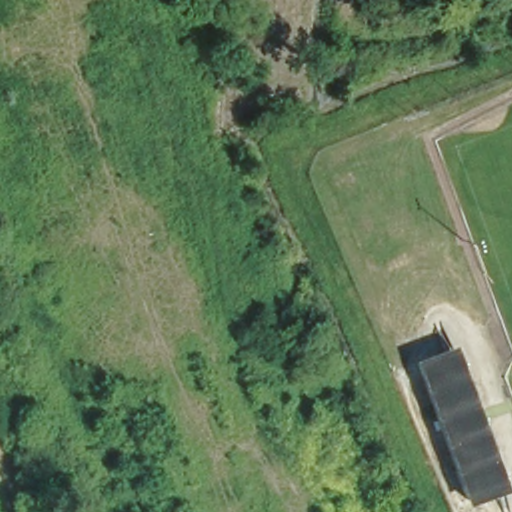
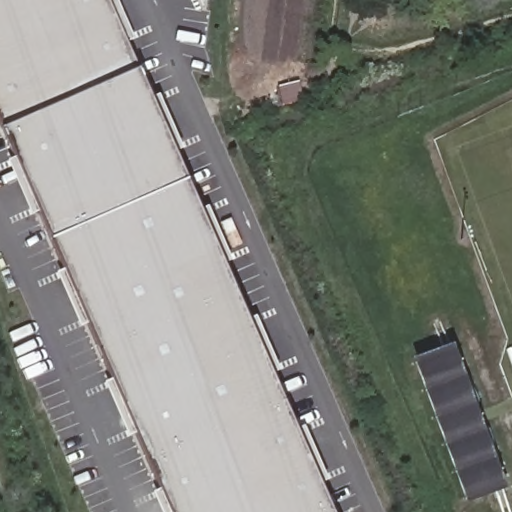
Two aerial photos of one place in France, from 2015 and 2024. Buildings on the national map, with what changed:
new [(0,117),(0,0),(111,0),(336,512),(173,512),(0,117)]
unchanged [(437,322),(445,320),(462,372),(471,370),(482,402),(476,405),(485,431),(490,428),(501,460),(496,462),(512,511),(512,512),(501,512),(494,493),(464,503),(416,363),(447,352),(437,322)]

